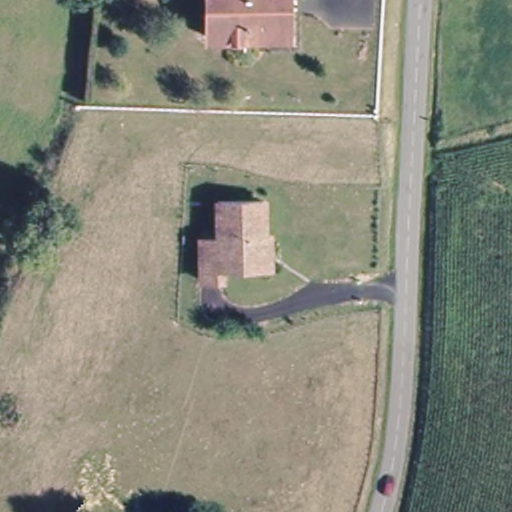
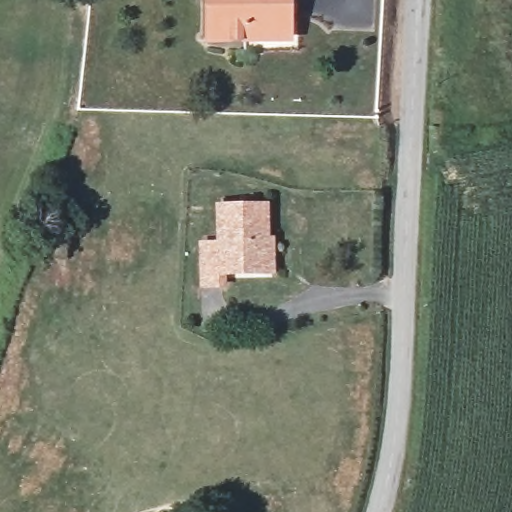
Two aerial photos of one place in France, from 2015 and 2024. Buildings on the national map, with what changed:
unchanged [(207,37),(208,0),(289,0),(287,42),(207,37)]
unchanged [(226,257),(225,282),(201,279),(205,239),(223,241),(226,200),(267,203),(265,238),(273,238),(272,261),(255,260),(226,257)]

